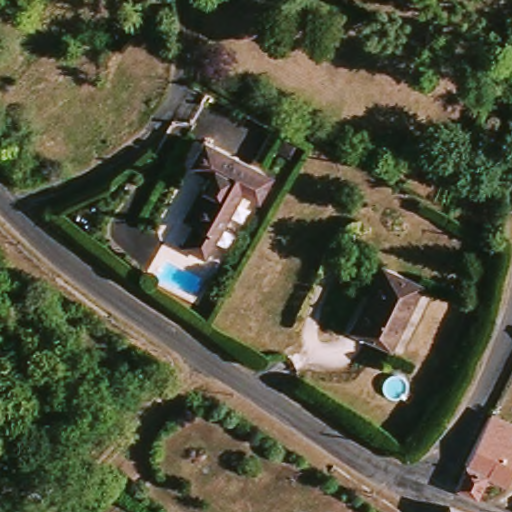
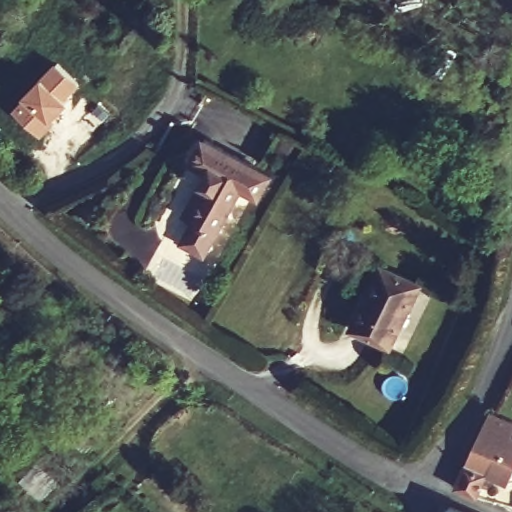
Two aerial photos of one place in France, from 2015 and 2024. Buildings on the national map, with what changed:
new [(80,86),(66,100),(72,107),(41,139),(12,110),(57,64),(80,86)]
unchanged [(257,201),(241,192),(201,257),(182,246),(193,229),(187,222),(207,190),(200,186),(207,175),(191,162),(199,146),(202,139),(268,177),(257,201)]
unchanged [(379,269),(417,286),(390,350),(351,332),(379,269)]
unchanged [(465,480),(475,455),(471,454),(495,405),(512,413),(512,466),(510,471),(495,464),(485,487),(465,480)]
unchanged [(462,512),(443,512),(446,505),(462,512)]

